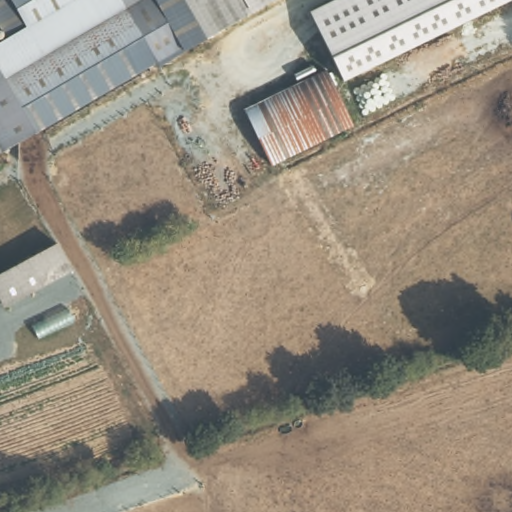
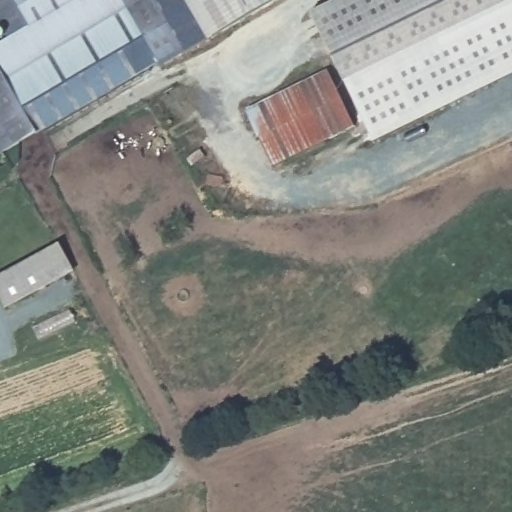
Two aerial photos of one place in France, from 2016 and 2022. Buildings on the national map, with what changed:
unchanged [(127,0),(164,55),(47,132),(45,129),(0,61),(0,49),(33,26),(15,0),(127,0)]
unchanged [(169,61),(164,55),(150,35),(131,6),(127,0),(277,0),(209,44),(169,61)]
unchanged [(512,0),(512,3),(343,84),(307,14),(335,0),(512,0)]
new [(512,3),(512,74),(373,141),(343,84),(512,3)]
unchanged [(45,129),(47,132),(45,134),(12,153),(0,128),(0,61),(45,129)]
unchanged [(357,123),(273,164),(245,109),(328,68),(357,123)]
unchanged [(0,159),(0,128),(12,153),(0,159)]
unchanged [(1,298),(0,294),(0,266),(64,242),(73,272),(1,298)]

